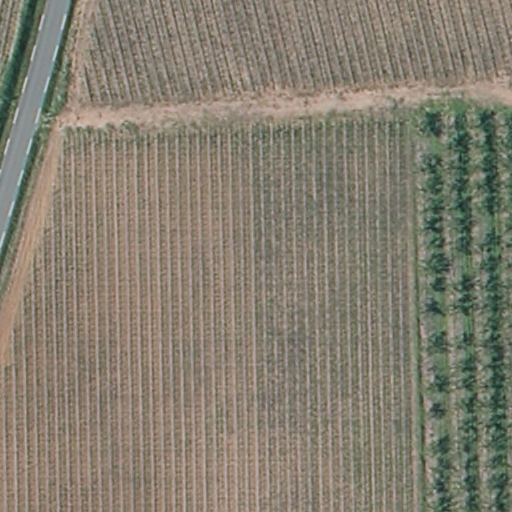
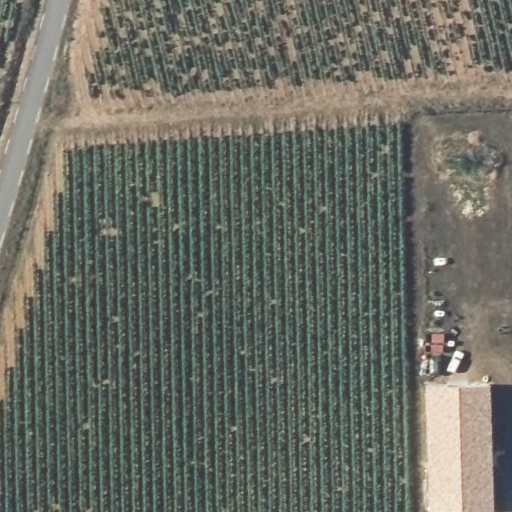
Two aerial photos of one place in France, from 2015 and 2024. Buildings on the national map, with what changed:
new [(494,510),(431,511),(428,386),(491,385),(494,510)]

